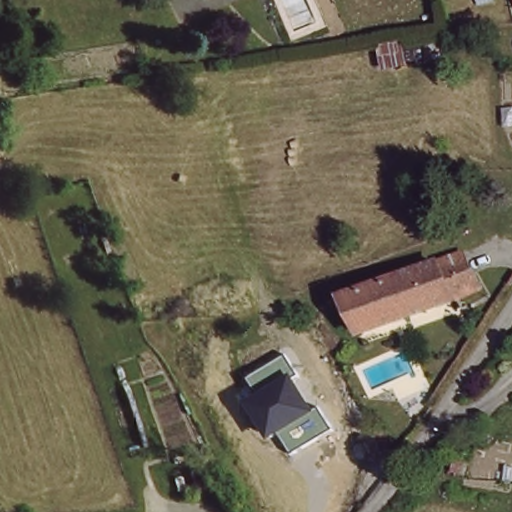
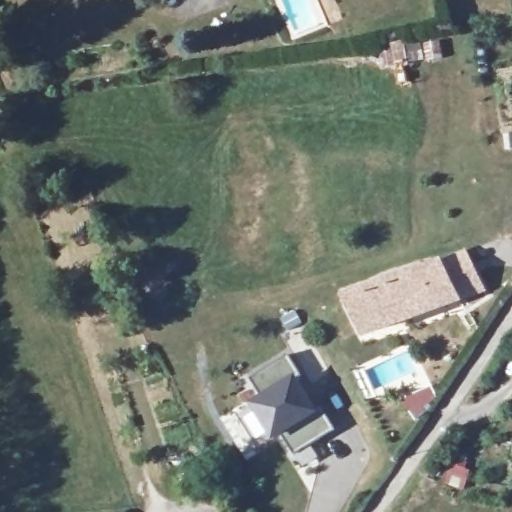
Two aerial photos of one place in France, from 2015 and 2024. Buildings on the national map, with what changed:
unchanged [(512,0),(512,3),(511,0),(512,0)]
unchanged [(345,306),(462,254),(475,290),(362,338),(345,306)]
unchanged [(336,430),(293,457),(278,435),(270,439),(250,406),(258,400),(248,380),(288,355),(336,430)]

